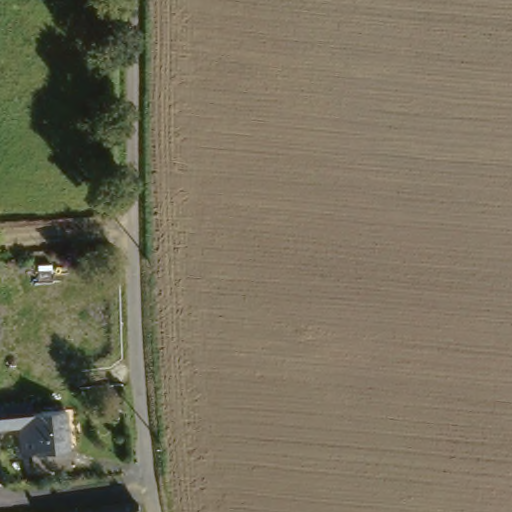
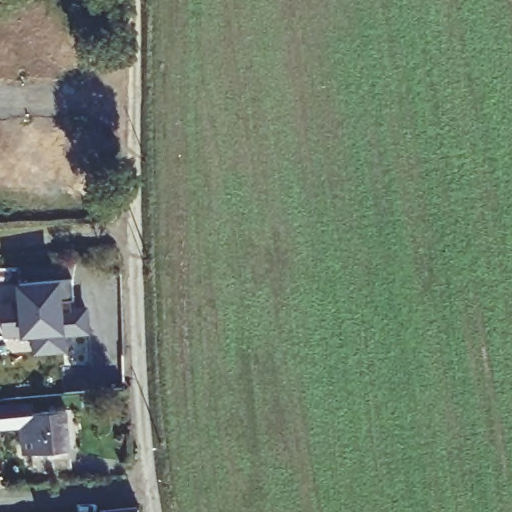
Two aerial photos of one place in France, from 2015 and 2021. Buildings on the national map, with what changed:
new [(60,300),(61,312),(84,309),(86,330),(62,333),(63,349),(36,352),(35,332),(3,334),(0,309),(0,305),(21,304),(20,284),(72,279),(73,298),(60,300)]
unchanged [(31,399),(32,409),(47,409),(50,444),(40,445),(36,445),(34,424),(3,426),(0,403),(31,399)]
unchanged [(50,444),(47,409),(73,406),(76,462),(41,463),(40,445),(50,444)]
unchanged [(151,507),(151,512),(119,512),(118,509),(151,507)]
unchanged [(118,509),(119,512),(92,512),(118,509)]

